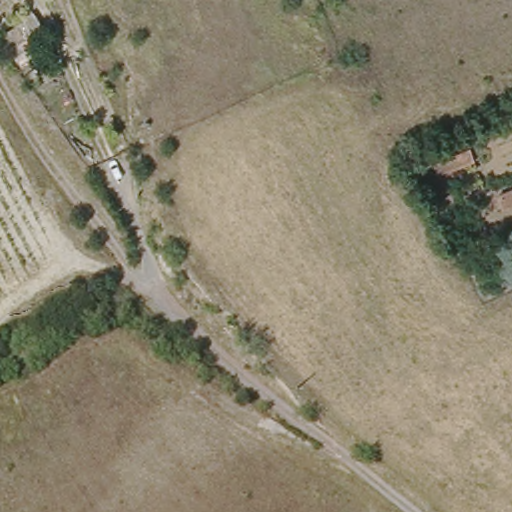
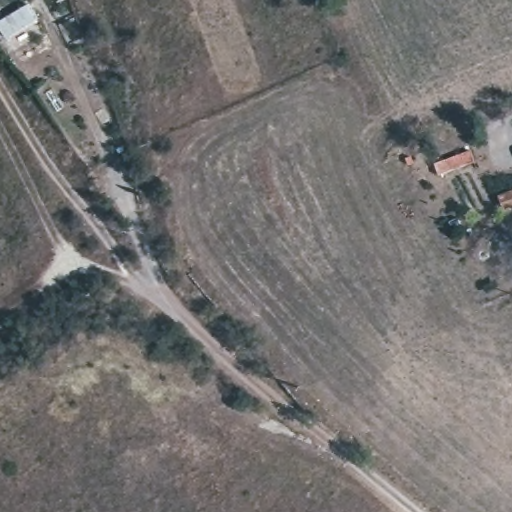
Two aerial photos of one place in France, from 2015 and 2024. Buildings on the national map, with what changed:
unchanged [(0,35),(0,34),(32,13),(43,27),(26,40),(32,52),(13,61),(0,35)]
unchanged [(469,167),(448,174),(445,162),(462,155),(469,167)]
unchanged [(491,199),(512,190),(512,209),(499,214),(491,199)]

